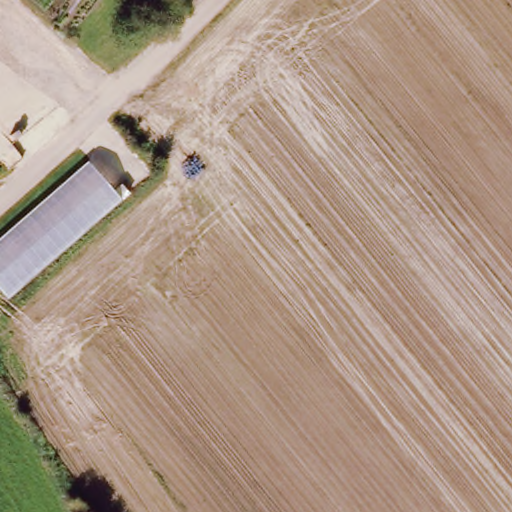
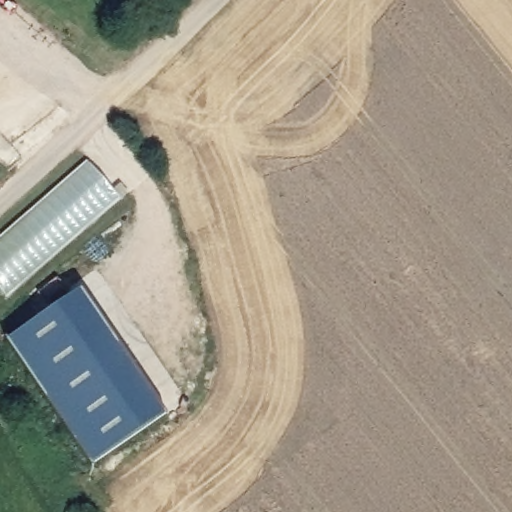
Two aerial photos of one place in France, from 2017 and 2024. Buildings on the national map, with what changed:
unchanged [(0,237),(87,162),(121,199),(7,297),(0,289),(0,237)]
new [(166,418),(92,468),(7,343),(82,293),(166,418)]

